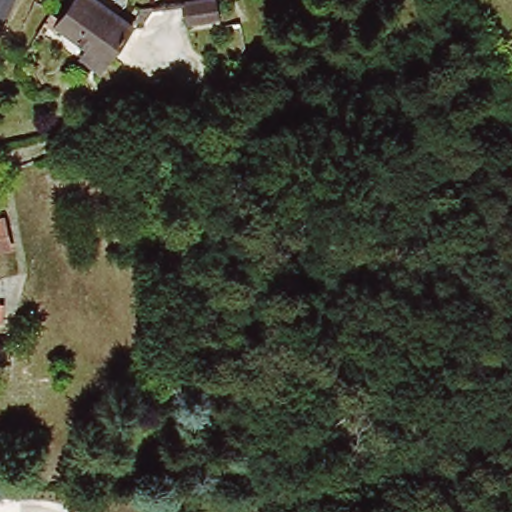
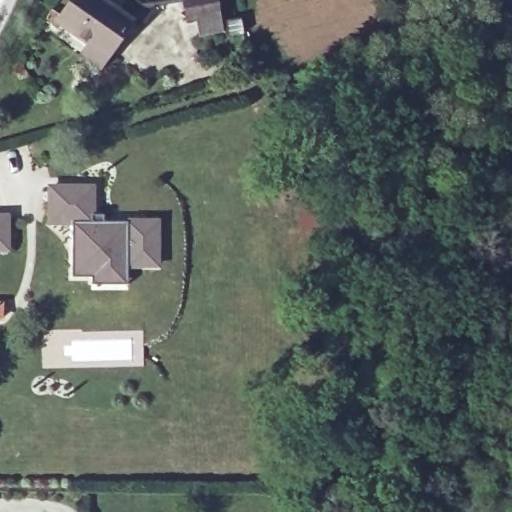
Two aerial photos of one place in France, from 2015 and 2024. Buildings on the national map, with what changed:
unchanged [(88,45),(57,22),(73,0),(100,0),(132,22),(107,59),(99,70),(79,56),(88,45)]
unchanged [(186,20),(182,0),(216,0),(219,14),(186,20)]
new [(93,188),(93,220),(158,221),(158,268),(125,270),(125,290),(91,290),(91,276),(72,276),(72,223),(51,222),(52,187),(93,188)]
demolished [(4,217),(11,246),(0,248),(0,218),(4,217)]
unchanged [(3,318),(0,318),(0,303),(3,303),(3,318)]

